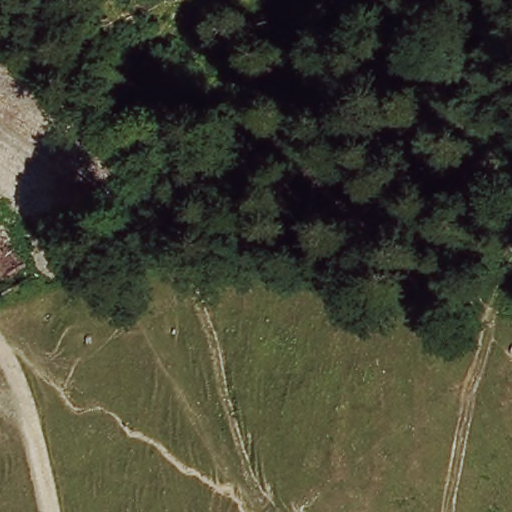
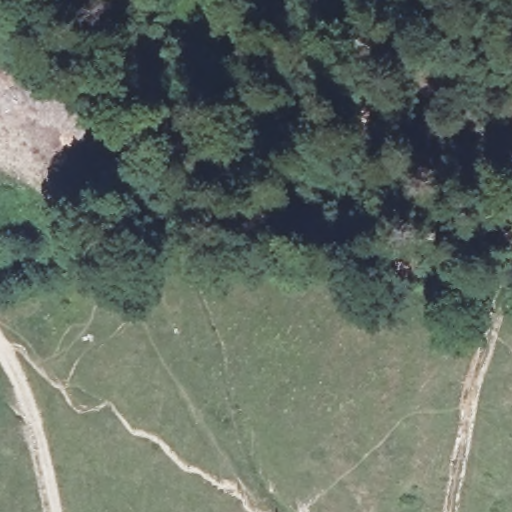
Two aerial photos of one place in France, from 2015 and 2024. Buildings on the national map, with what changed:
[]

